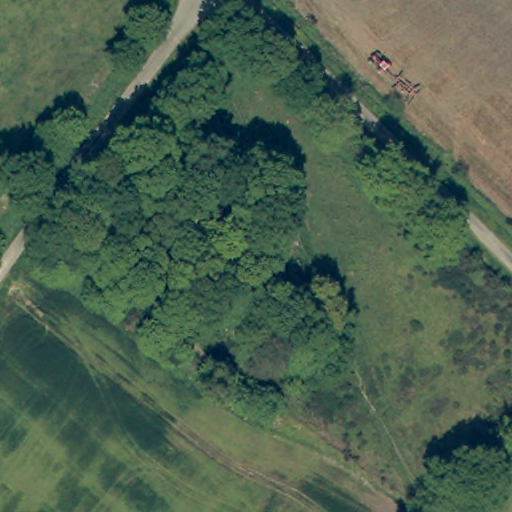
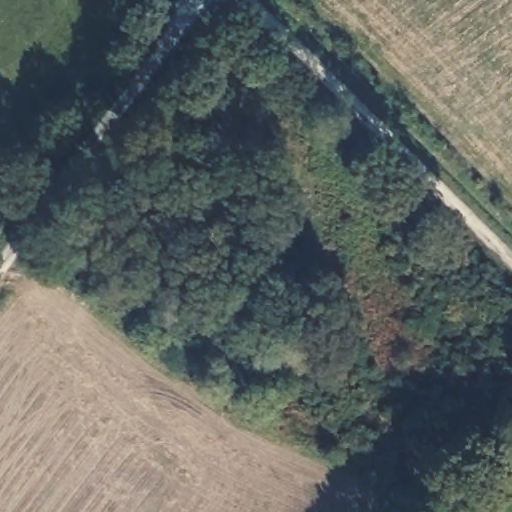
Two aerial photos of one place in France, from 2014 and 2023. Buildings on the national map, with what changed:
[]

